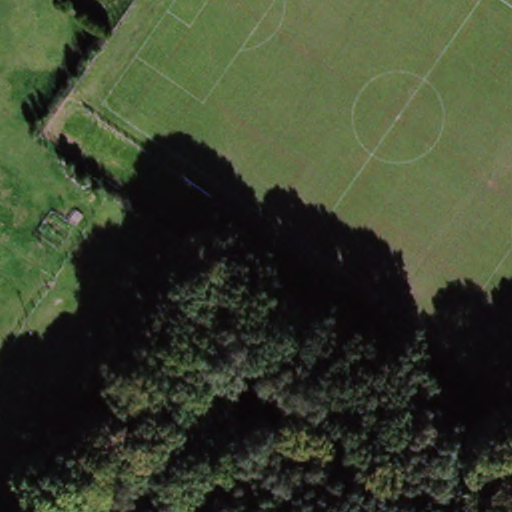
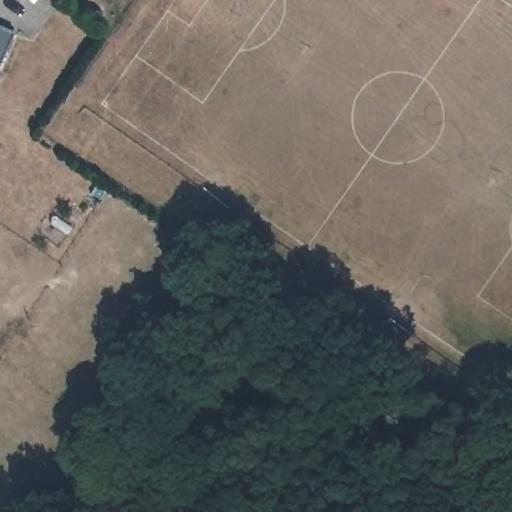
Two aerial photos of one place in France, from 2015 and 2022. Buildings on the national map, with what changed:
new [(0,68),(0,27),(16,35),(0,68)]

